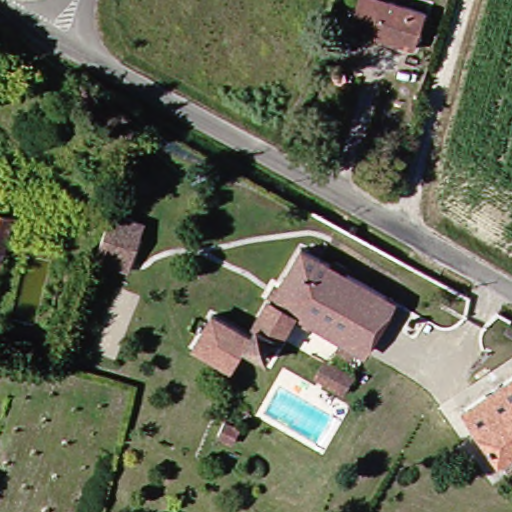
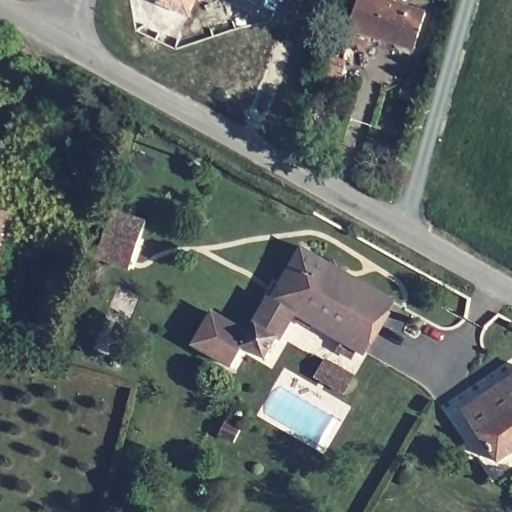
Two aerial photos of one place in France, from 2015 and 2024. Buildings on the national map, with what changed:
new [(156,4),(158,0),(197,0),(190,18),(156,4)]
unchanged [(411,51),(345,29),(355,0),(382,0),(423,13),(411,51)]
unchanged [(111,210),(140,222),(120,271),(91,259),(111,210)]
unchanged [(10,220),(0,270),(0,218),(10,220)]
unchanged [(344,338),(296,311),(265,364),(244,352),(231,372),(194,350),(212,319),(250,341),(301,253),(371,293),(344,338)]
unchanged [(340,351),(347,340),(344,338),(371,293),(395,306),(368,352),(360,347),(352,358),(340,351)]
unchanged [(315,376),(327,360),(353,376),(345,393),(315,376)]
unchanged [(512,381),(512,453),(497,462),(465,409),(512,381)]

